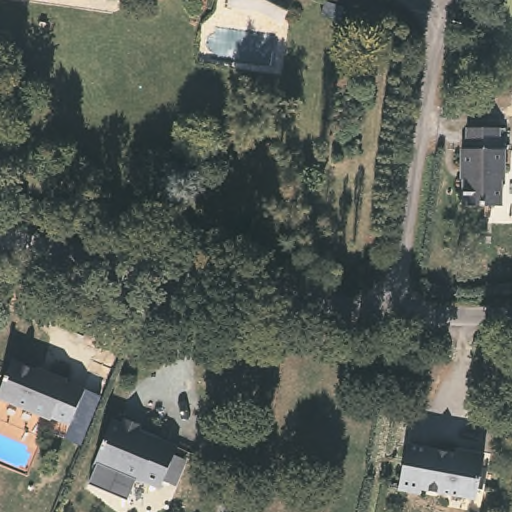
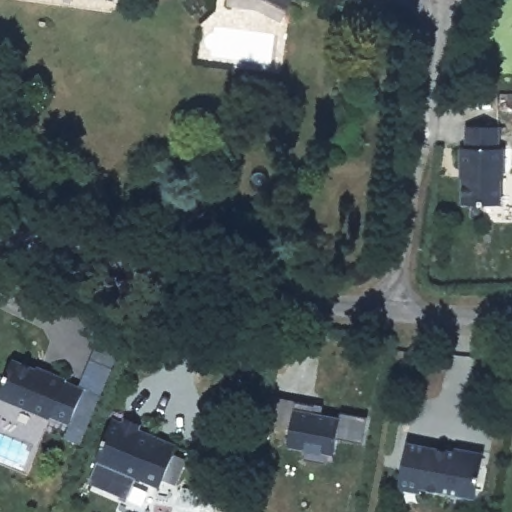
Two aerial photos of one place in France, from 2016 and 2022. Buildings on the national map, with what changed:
unchanged [(259,5),(229,1),(230,0),(292,0),(282,18),(259,5)]
unchanged [(462,168),(466,167),(466,160),(460,160),(459,139),(464,139),(465,117),(496,117),(497,139),(502,138),(503,170),(500,170),(501,195),(463,196),(462,168)]
unchanged [(46,372),(47,370),(65,377),(64,379),(83,387),(68,422),(50,413),(49,416),(0,396),(0,384),(11,358),(46,372)]
new [(305,450),(287,447),(290,430),(274,425),(278,398),(324,405),(322,413),(341,417),(342,413),(365,418),(361,443),(338,441),(334,456),(326,453),(324,464),(303,461),(305,450)]
unchanged [(167,487),(146,477),(143,481),(97,462),(117,417),(129,422),(131,417),(148,424),(146,430),(184,446),(167,487)]
unchanged [(405,434),(482,447),(475,488),(420,478),(419,484),(397,480),(400,465),(405,434)]

